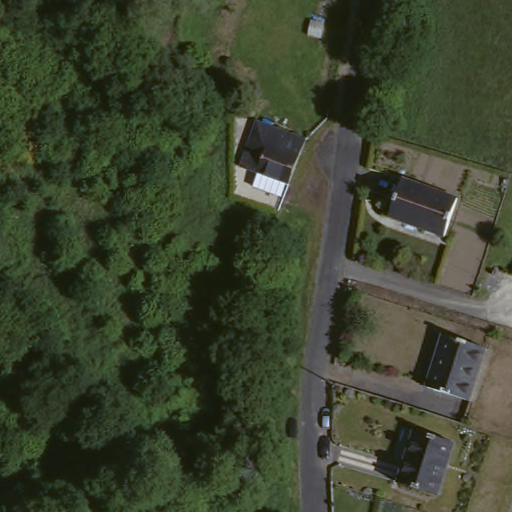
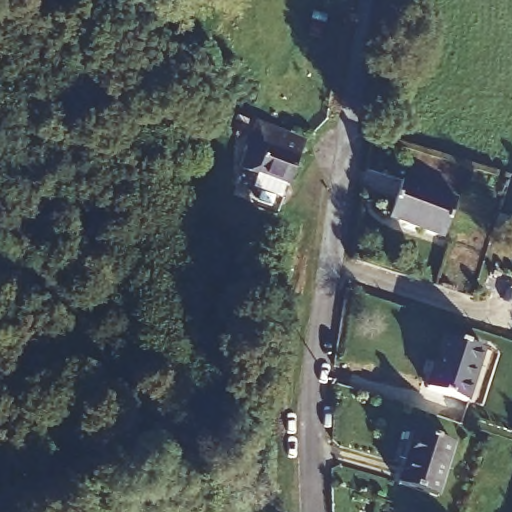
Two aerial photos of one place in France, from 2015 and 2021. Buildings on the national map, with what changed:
unchanged [(284,189),(283,189),(277,202),(249,191),(254,178),(236,171),(246,142),(252,125),(279,136),(301,145),(284,189)]
unchanged [(403,180),(458,199),(445,237),(390,218),(403,180)]
unchanged [(444,336),(485,349),(468,400),(428,388),(444,336)]
unchanged [(415,437),(453,449),(437,501),(399,489),(415,437)]

